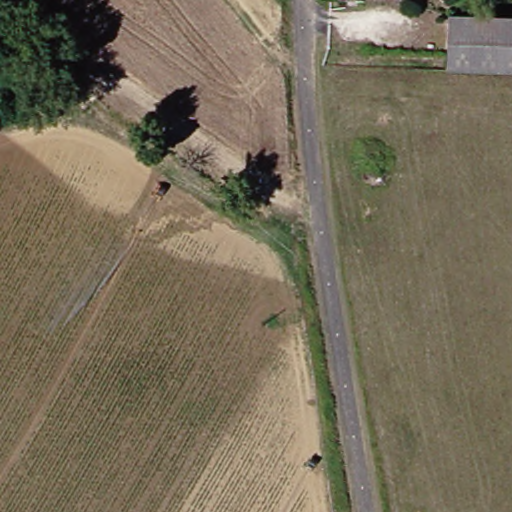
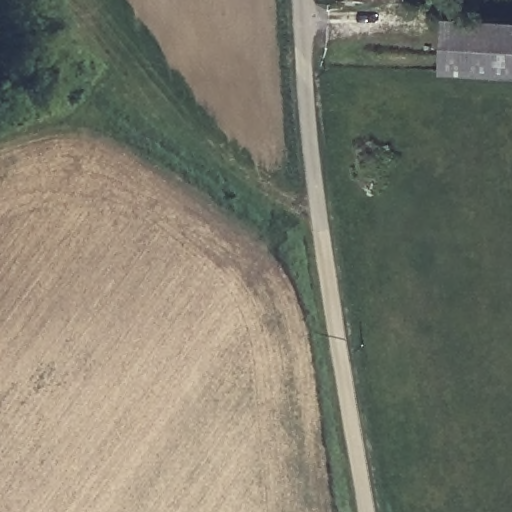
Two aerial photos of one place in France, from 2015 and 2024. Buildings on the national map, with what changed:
unchanged [(405,6),(377,4),(377,0),(405,0),(405,6)]
unchanged [(512,18),(512,72),(454,68),(457,14),(512,18)]

